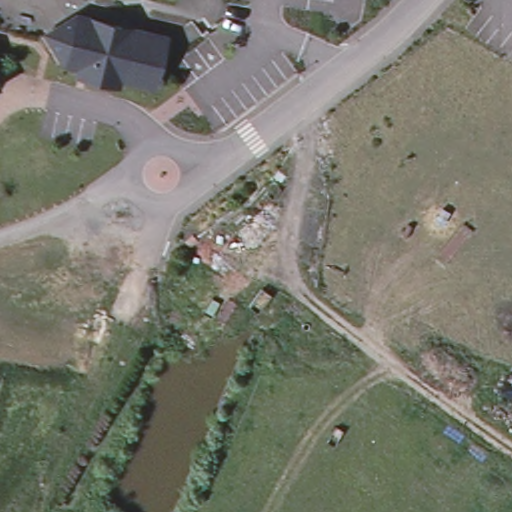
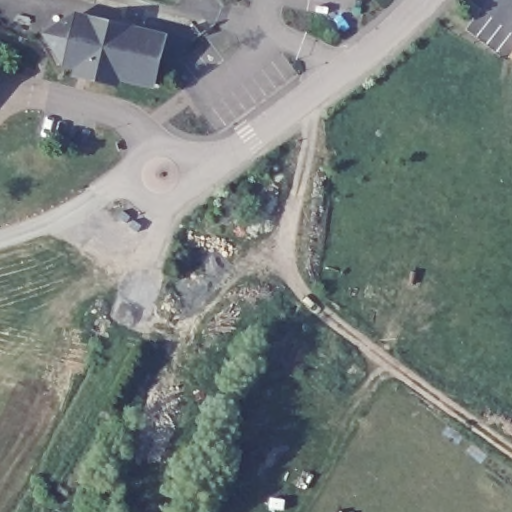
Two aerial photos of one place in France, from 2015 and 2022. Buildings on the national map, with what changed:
unchanged [(168,35),(157,81),(123,73),(120,82),(80,73),(83,64),(68,60),(49,31),(78,14),(168,35)]

